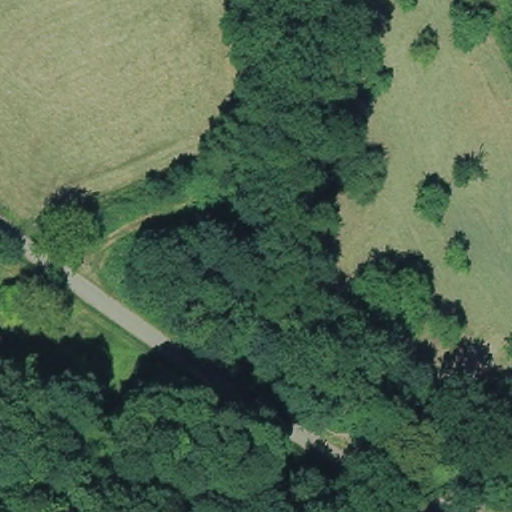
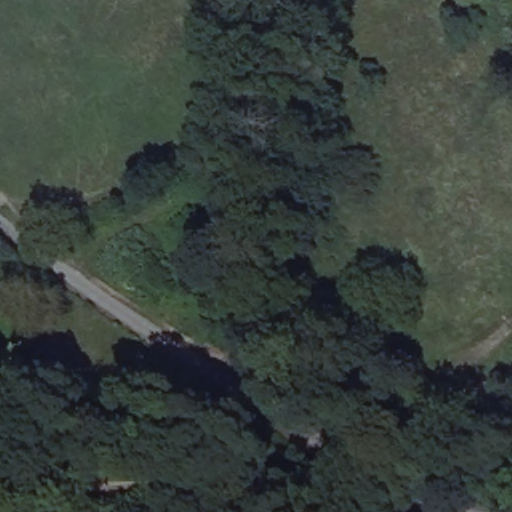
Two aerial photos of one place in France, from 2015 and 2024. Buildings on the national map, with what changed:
unchanged [(176,254),(210,255),(236,272),(246,305),(240,322),(161,268),(176,254)]
unchanged [(0,340),(0,338),(1,340),(0,340)]

